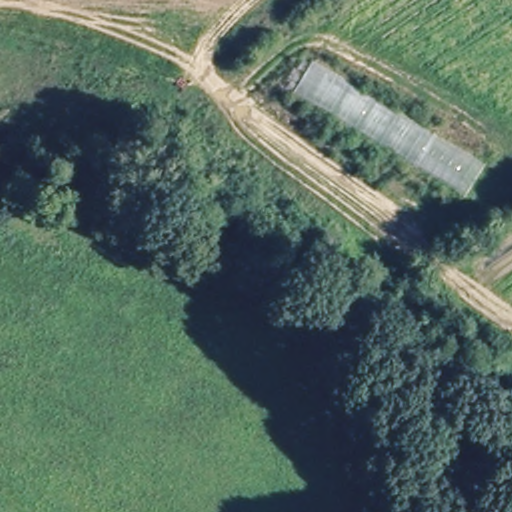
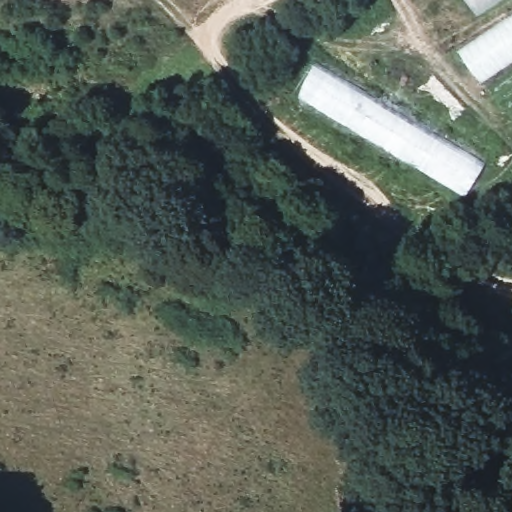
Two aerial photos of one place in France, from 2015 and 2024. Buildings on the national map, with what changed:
new [(476,16),(464,0),(502,0),(476,16)]
new [(512,14),(512,63),(480,85),(457,51),(512,14)]
unchanged [(487,164),(466,198),(292,91),(312,59),(487,164)]

